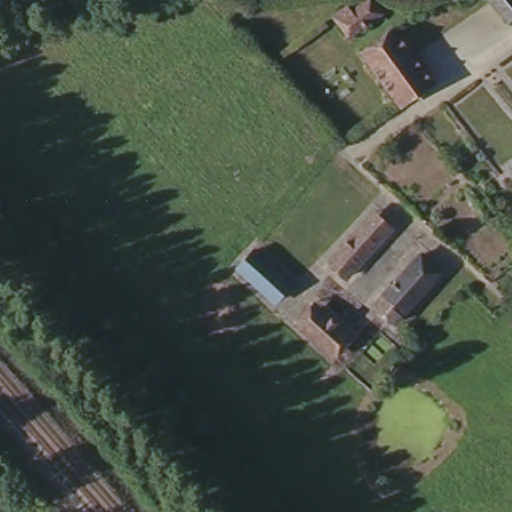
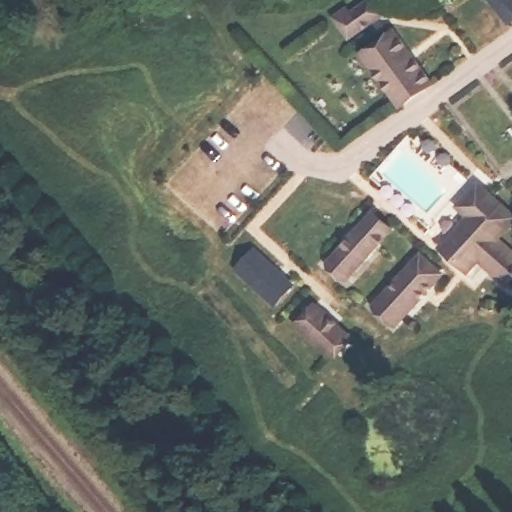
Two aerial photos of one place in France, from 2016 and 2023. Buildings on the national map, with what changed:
unchanged [(333,16),(347,6),(350,11),(365,0),(371,0),(380,12),(348,36),(333,16)]
unchanged [(512,0),(512,19),(497,0),(496,0),(512,0)]
unchanged [(366,51),(396,27),(402,36),(418,58),(437,84),(406,106),(403,102),(371,59),(366,51)]
new [(464,216),(456,207),(477,181),(512,212),(512,228),(501,241),(512,251),(512,282),(507,287),(480,263),(468,275),(437,247),(464,216)]
unchanged [(333,263),(366,227),(378,214),(396,229),(382,242),(350,278),(333,263)]
unchanged [(296,283),(278,302),(242,268),(258,250),(296,283)]
unchanged [(442,272),(395,324),(373,305),(420,253),(442,272)]
unchanged [(332,356),(302,328),(296,323),(314,305),(320,308),(349,336),(332,356)]

